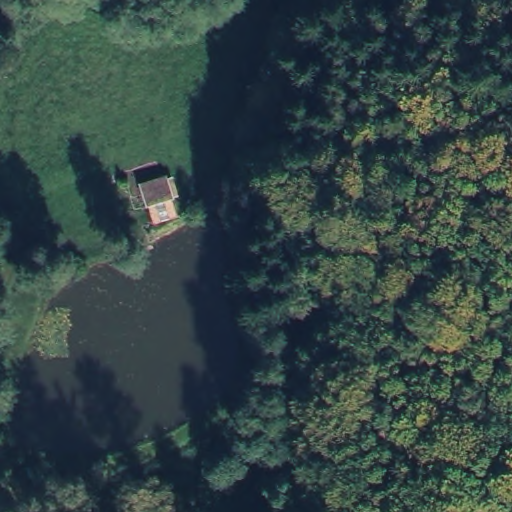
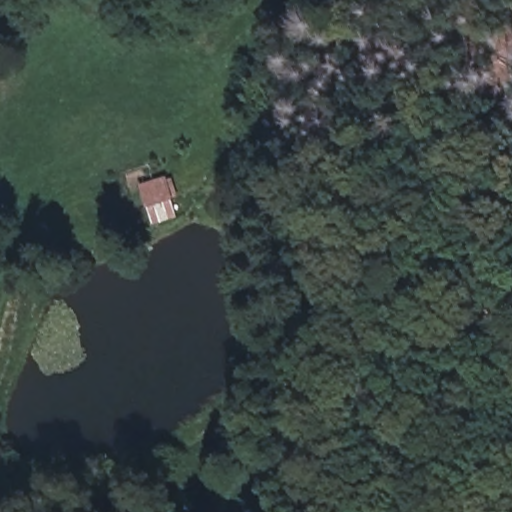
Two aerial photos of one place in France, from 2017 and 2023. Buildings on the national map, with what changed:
unchanged [(166,178),(173,200),(146,210),(139,186),(166,178)]

